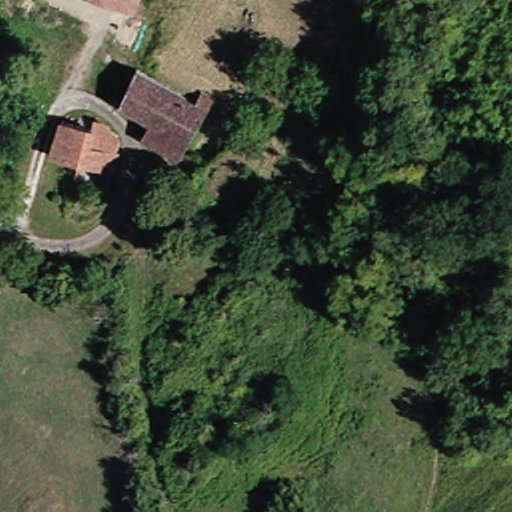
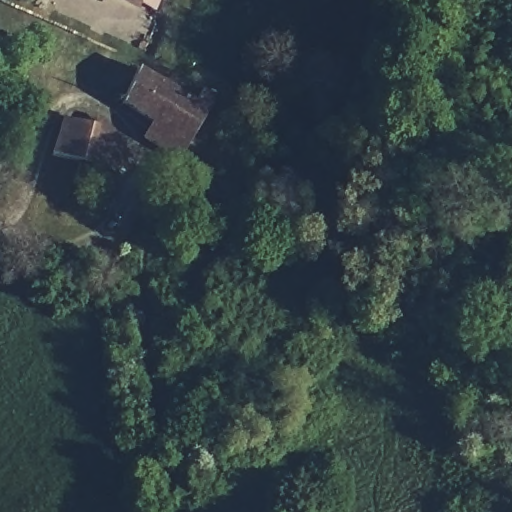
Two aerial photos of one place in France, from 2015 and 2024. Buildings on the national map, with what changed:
unchanged [(128,0),(151,0),(148,8),(128,0)]
unchanged [(197,99),(205,87),(223,97),(197,144),(134,105),(125,100),(139,70),(197,99)]
unchanged [(189,159),(125,120),(134,105),(197,144),(189,159)]
unchanged [(113,172),(54,155),(64,121),(92,129),(95,120),(104,121),(121,136),(113,172)]

